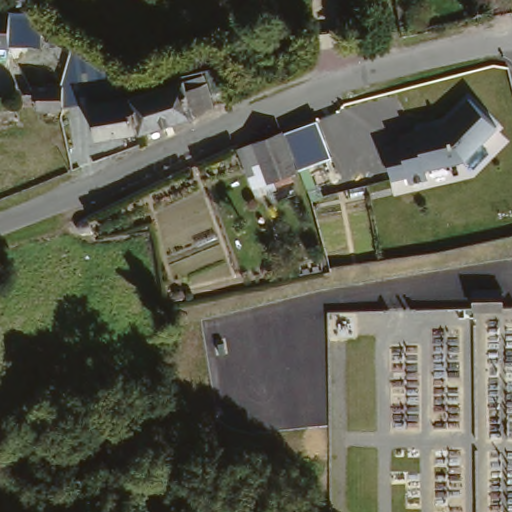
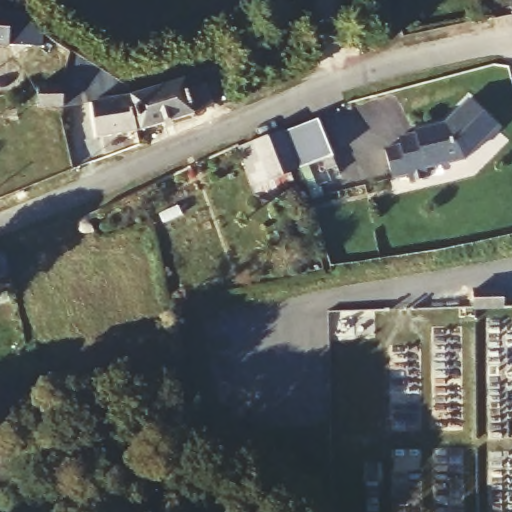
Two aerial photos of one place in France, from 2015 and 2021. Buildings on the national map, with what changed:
unchanged [(19,45),(18,48),(0,49),(0,15),(4,15),(3,36),(19,37),(19,45)]
unchanged [(180,77),(184,86),(204,79),(214,105),(194,110),(195,112),(145,132),(131,98),(180,77)]
unchanged [(59,82),(63,108),(36,113),(34,99),(26,100),(24,88),(59,82)]
unchanged [(81,160),(77,139),(92,137),(90,130),(87,117),(87,109),(131,98),(145,132),(94,144),(96,158),(81,160)]
unchanged [(389,144),(405,141),(403,133),(421,129),(420,127),(450,120),(471,100),(499,124),(468,154),(429,163),(431,173),(413,177),(411,170),(396,173),(389,144)]
unchanged [(242,150),(317,119),(332,155),(301,164),(302,172),(282,183),(278,176),(256,183),(242,150)]
unchanged [(501,289),(503,309),(468,309),(468,290),(501,289)]

